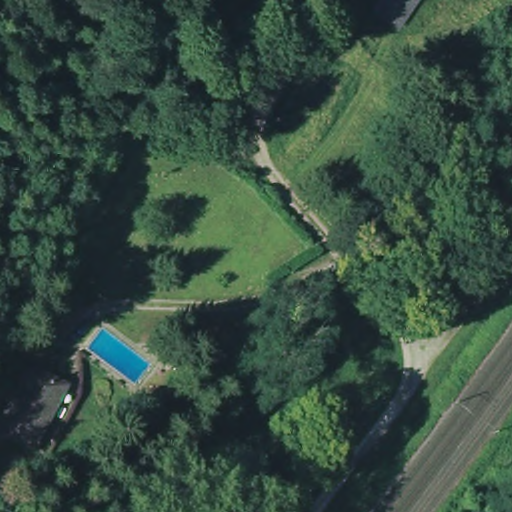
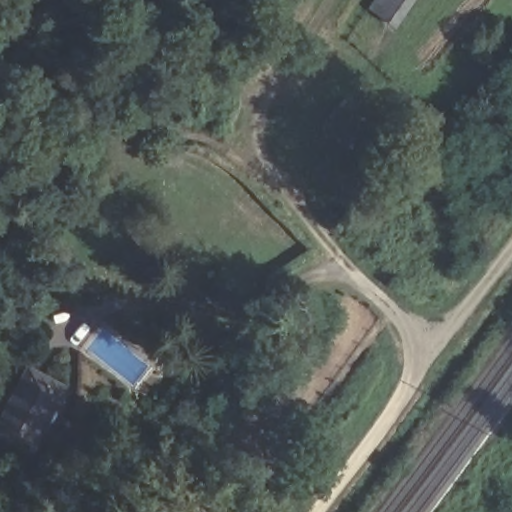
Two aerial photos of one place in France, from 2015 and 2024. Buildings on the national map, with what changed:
unchanged [(394,28),(381,19),(369,9),(376,0),(413,0),(394,28)]
unchanged [(0,379),(9,362),(42,379),(9,443),(0,439),(0,379)]

